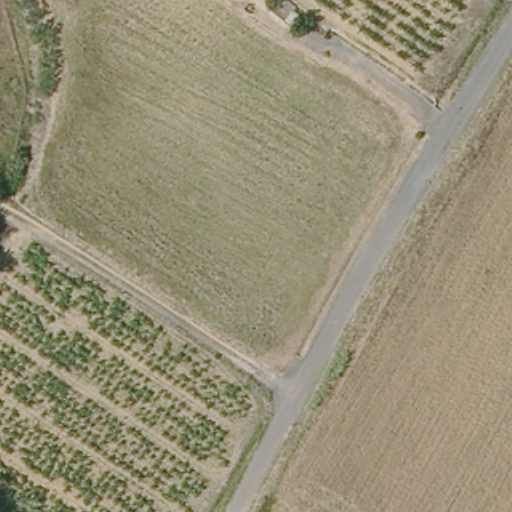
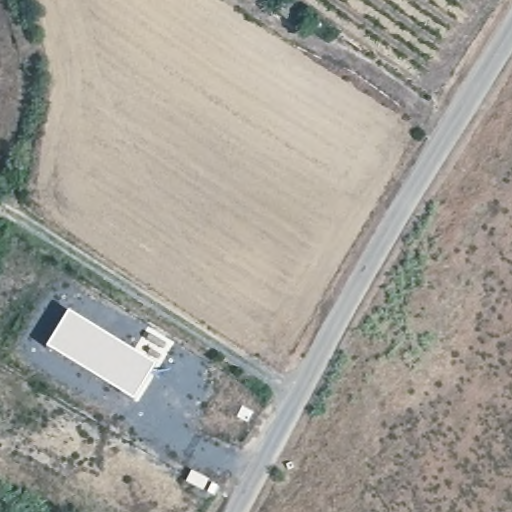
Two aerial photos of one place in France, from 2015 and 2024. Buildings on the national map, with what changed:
new [(70,316),(157,368),(136,404),(48,351),(70,316)]

